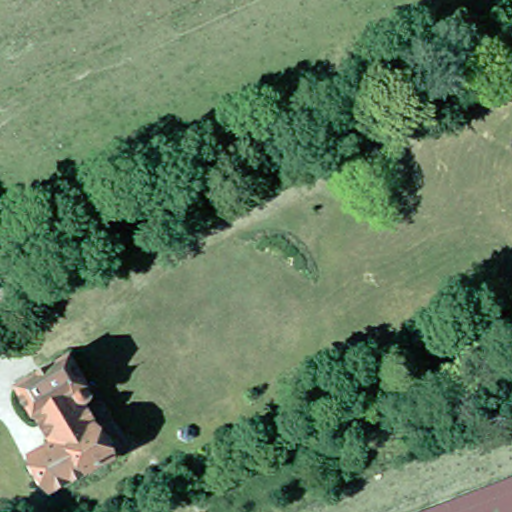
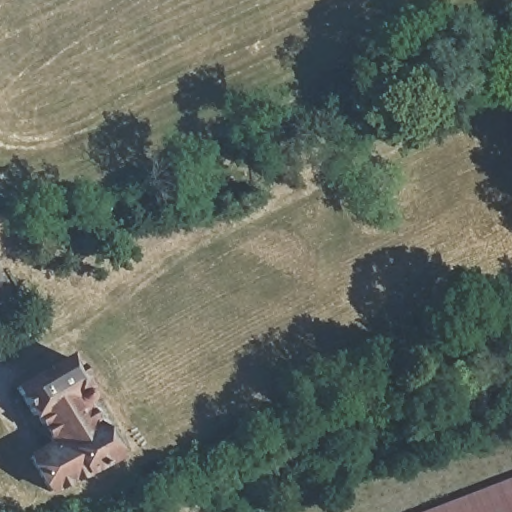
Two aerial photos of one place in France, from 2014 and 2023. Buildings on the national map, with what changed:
unchanged [(52,445),(35,416),(33,417),(17,388),(68,360),(84,388),(72,394),(109,459),(48,493),(28,458),(52,445)]
unchanged [(83,391),(85,391),(87,392),(89,394),(90,396),(90,399),(89,401),(88,403),(86,404),(82,404),(80,403),(78,402),(77,399),(77,397),(77,395),(78,393),(80,391),(83,391)]
unchanged [(450,512),(512,488),(512,512),(450,512)]

